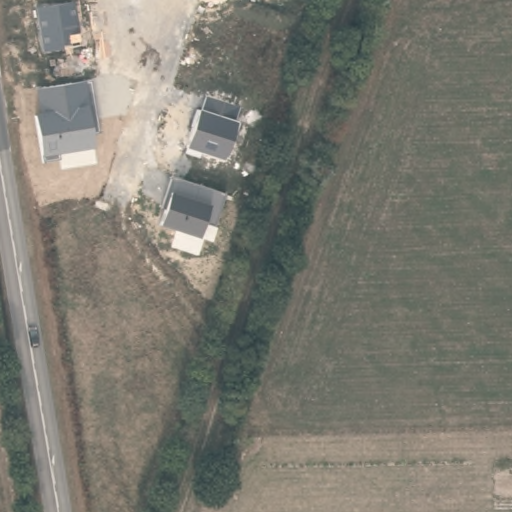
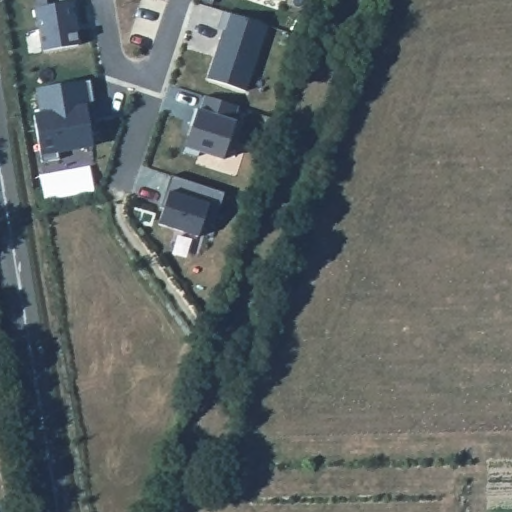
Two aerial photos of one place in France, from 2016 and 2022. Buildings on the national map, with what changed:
unchanged [(55,0),(56,4),(72,1),(79,44),(43,50),(35,0),(55,0)]
new [(224,29),(220,28),(225,12),(267,26),(246,91),(208,79),(224,29)]
unchanged [(35,112),(40,111),(35,90),(90,81),(97,132),(91,133),(92,147),(56,152),(58,158),(42,161),(35,112)]
unchanged [(240,106),(223,157),(186,146),(204,95),(240,106)]
unchanged [(225,192),(216,225),(202,221),(199,236),(159,223),(165,209),(160,208),(170,174),(225,192)]

